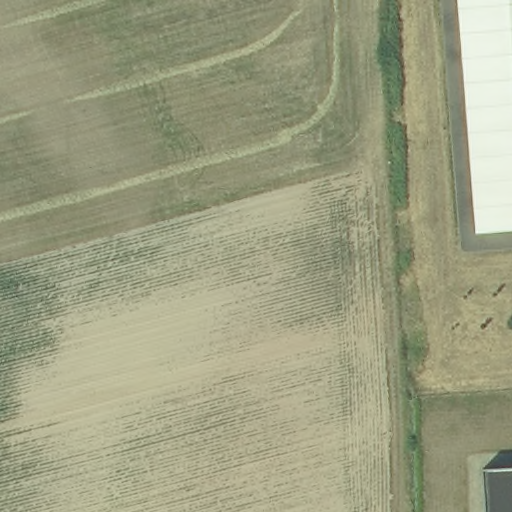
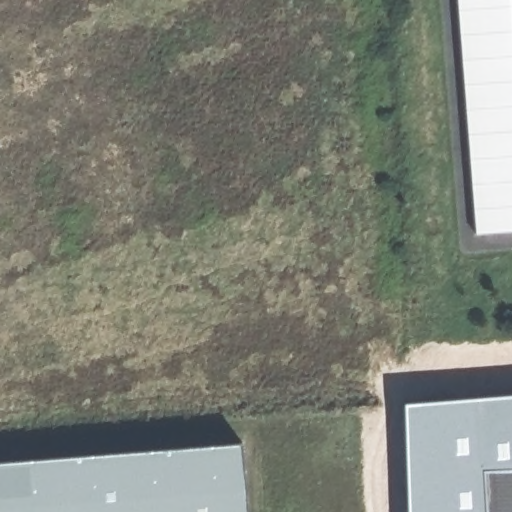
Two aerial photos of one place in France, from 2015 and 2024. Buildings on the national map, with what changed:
unchanged [(477,235),(458,0),(512,0),(512,232),(477,235)]
new [(483,470),(485,512),(405,512),(402,403),(512,394),(512,468),(483,470)]
new [(0,512),(0,466),(249,457),(250,512),(0,512)]
unchanged [(512,468),(512,512),(485,512),(483,470),(512,468)]

